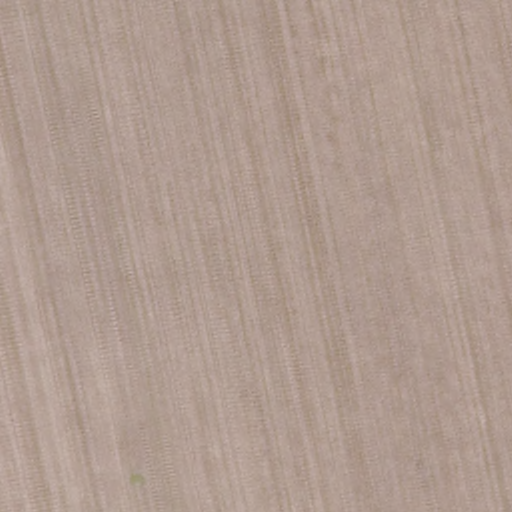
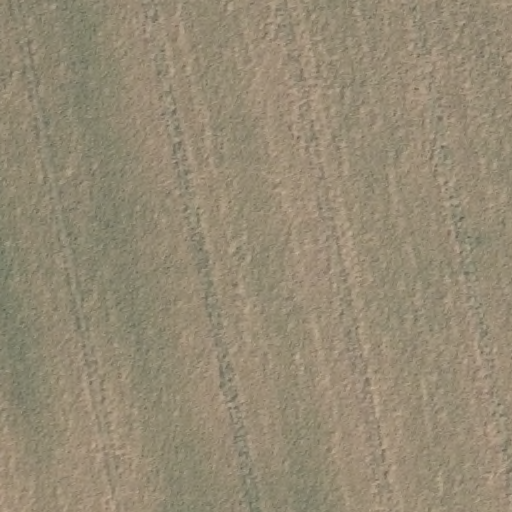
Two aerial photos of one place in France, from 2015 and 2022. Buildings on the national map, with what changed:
[]

